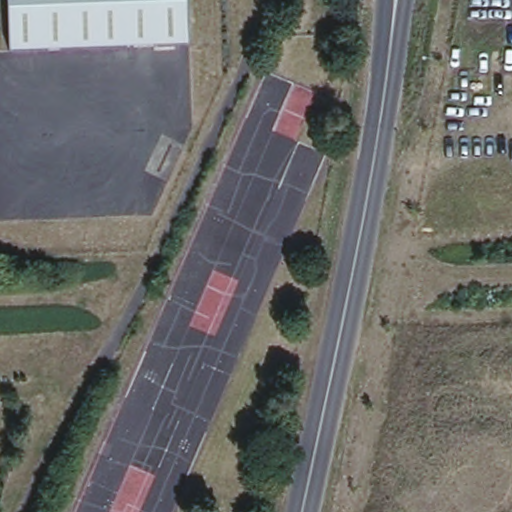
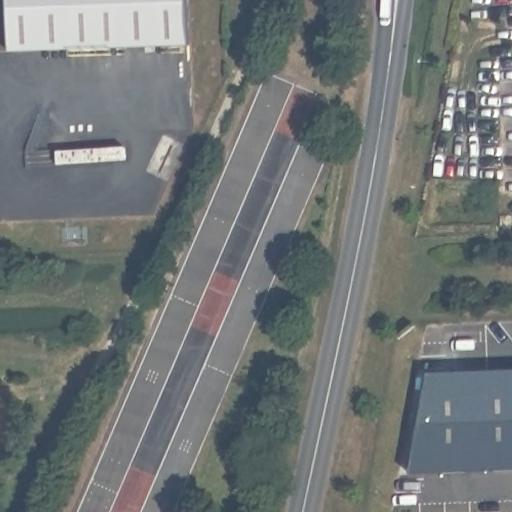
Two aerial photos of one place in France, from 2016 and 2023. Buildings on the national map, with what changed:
unchanged [(186,45),(8,52),(6,0),(182,0),(186,45)]
new [(432,364),(512,362),(512,470),(414,471),(432,364)]

